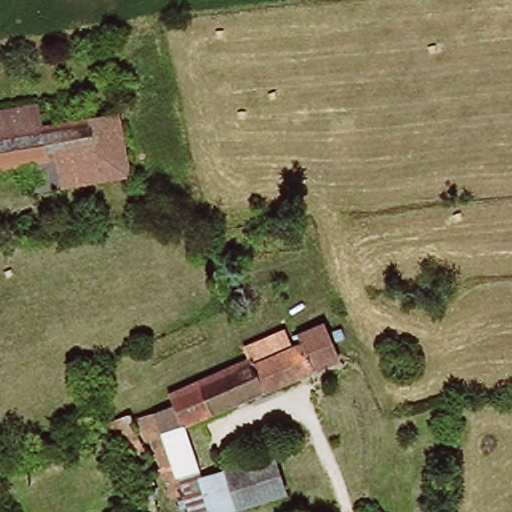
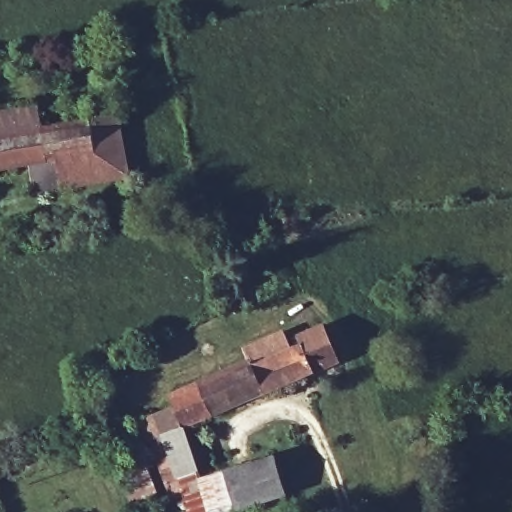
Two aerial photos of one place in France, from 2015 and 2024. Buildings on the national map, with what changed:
unchanged [(27,107),(32,128),(120,117),(126,189),(26,200),(22,172),(0,175),(0,109),(27,107)]
unchanged [(201,512),(185,512),(177,487),(173,475),(158,437),(148,438),(142,415),(177,403),(172,389),(231,365),(245,358),(248,367),(299,348),(313,343),(309,332),(328,325),(342,367),(324,373),(196,421),(209,457),(192,462),(198,476),(199,479),(214,473),(214,476),(223,506),(201,512)]
unchanged [(292,327),(299,348),(248,367),(245,358),(251,356),(246,342),(292,327)]
unchanged [(156,485),(137,491),(107,416),(127,408),(145,456),(156,485)]
unchanged [(289,488),(223,506),(214,476),(214,473),(279,456),(286,479),(289,488)]

